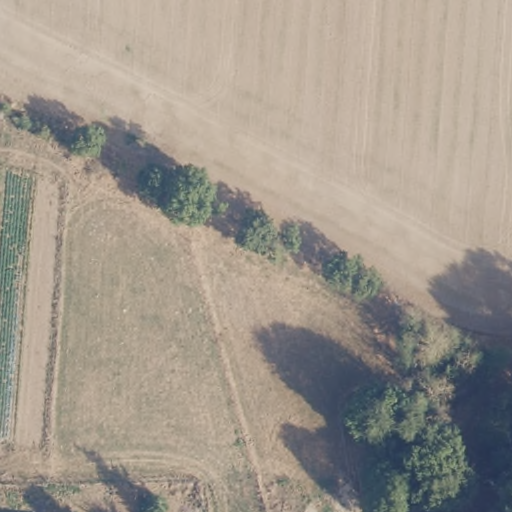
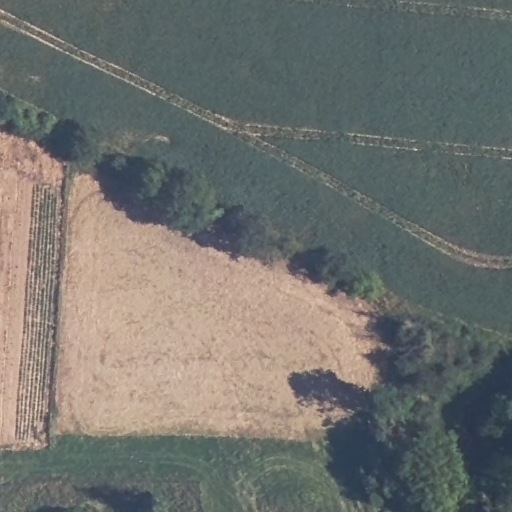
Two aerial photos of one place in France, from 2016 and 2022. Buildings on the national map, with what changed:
[]

